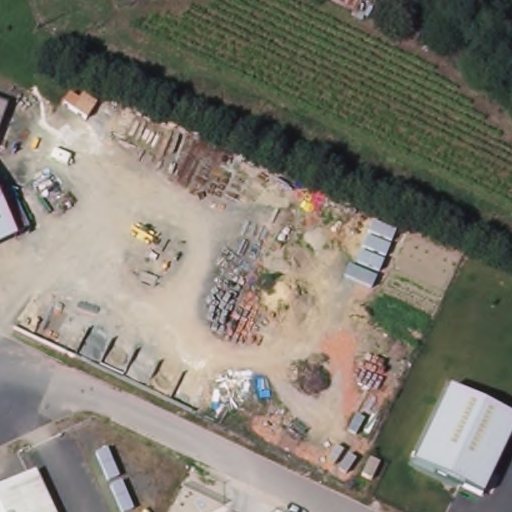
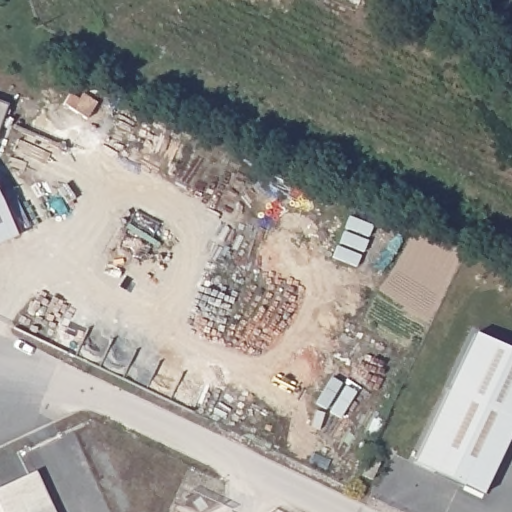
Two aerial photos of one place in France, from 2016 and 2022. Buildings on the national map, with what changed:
unchanged [(372,13),(368,11),(368,9),(347,0),(378,0),(372,13)]
unchanged [(0,120),(0,103),(5,105),(0,120)]
unchanged [(0,243),(0,206),(15,236),(0,243)]
new [(448,388),(475,333),(512,351),(512,418),(448,388)]
unchanged [(414,462),(448,388),(512,418),(512,434),(482,497),(414,462)]
unchanged [(54,512),(0,512),(0,488),(35,471),(54,512)]

